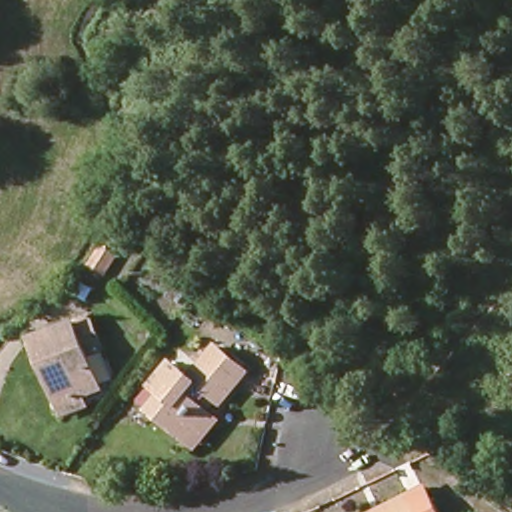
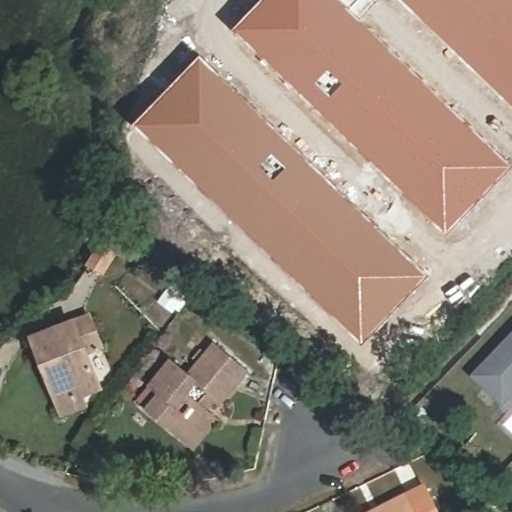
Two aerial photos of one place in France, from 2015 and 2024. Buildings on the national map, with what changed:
new [(360,18),(512,163),(512,170),(447,236),(234,31),(263,0),(376,0),(360,18)]
new [(512,108),(399,0),(512,0),(512,108)]
new [(431,276),(363,346),(135,126),(201,56),(431,276)]
unchanged [(100,245),(116,256),(103,278),(86,266),(100,245)]
unchanged [(54,419),(41,386),(24,340),(80,320),(91,351),(77,358),(90,393),(73,400),(77,411),(54,419)]
new [(472,376),(512,335),(512,398),(504,406),(472,376)]
unchanged [(187,445),(147,411),(160,396),(153,389),(172,366),(189,380),(197,370),(192,365),(199,358),(204,362),(215,349),(240,369),(247,376),(236,388),(219,408),(212,403),(205,412),(210,418),(217,424),(195,452),(187,445)]
unchanged [(370,512),(428,487),(441,512),(370,512)]

